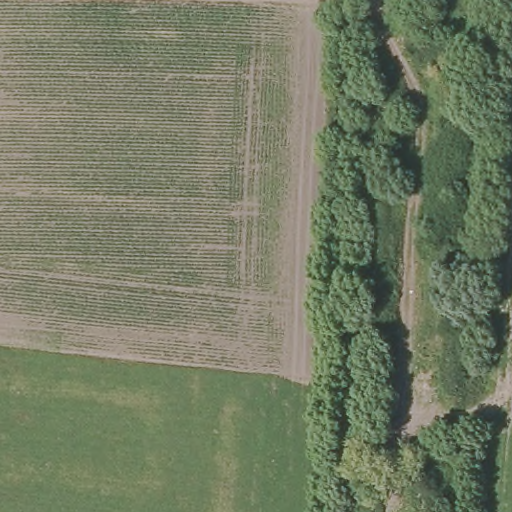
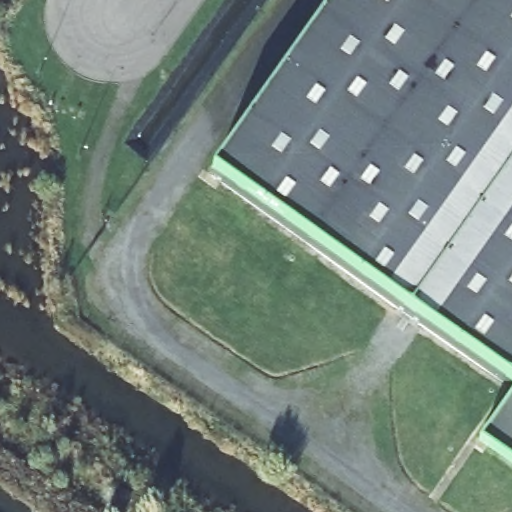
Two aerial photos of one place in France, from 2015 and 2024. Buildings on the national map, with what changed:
new [(341,0),(512,0),(512,369),(223,165),(341,0)]
new [(512,401),(512,455),(485,437),(512,401)]
demolished [(418,512),(375,512),(375,483),(418,482),(418,512)]

